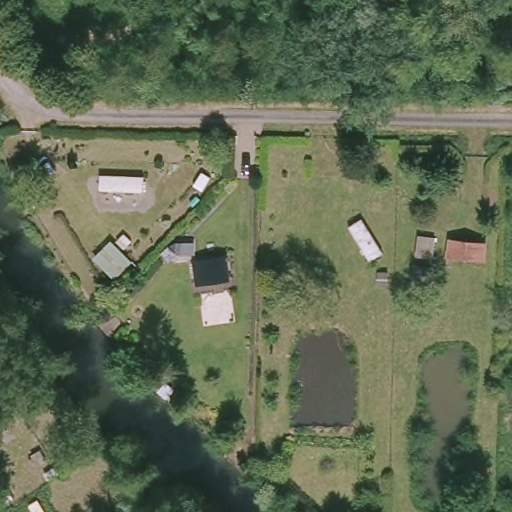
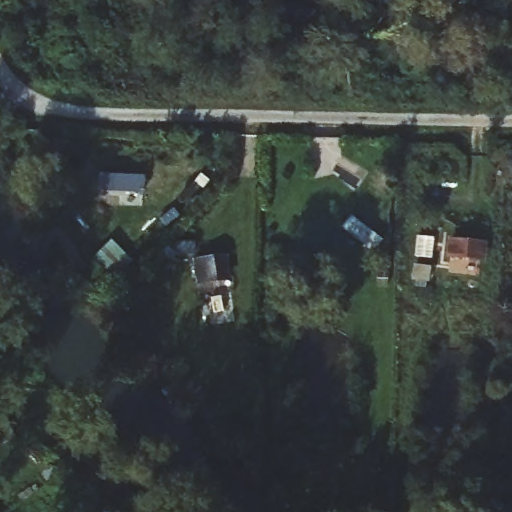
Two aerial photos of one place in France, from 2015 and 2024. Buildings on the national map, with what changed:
unchanged [(105,195),(103,177),(145,169),(148,187),(105,195)]
unchanged [(450,227),(435,224),(440,198),(453,198),(450,227)]
unchanged [(370,262),(350,226),(365,216),(387,252),(370,262)]
unchanged [(437,256),(417,255),(418,234),(437,236),(437,256)]
unchanged [(447,255),(448,237),(490,239),(488,262),(447,255)]
unchanged [(195,282),(191,258),(232,253),(233,280),(195,282)]
unchanged [(432,283),(416,281),(418,264),(435,267),(432,283)]

